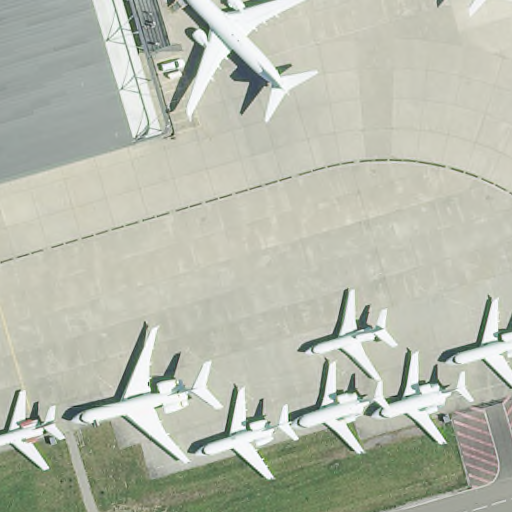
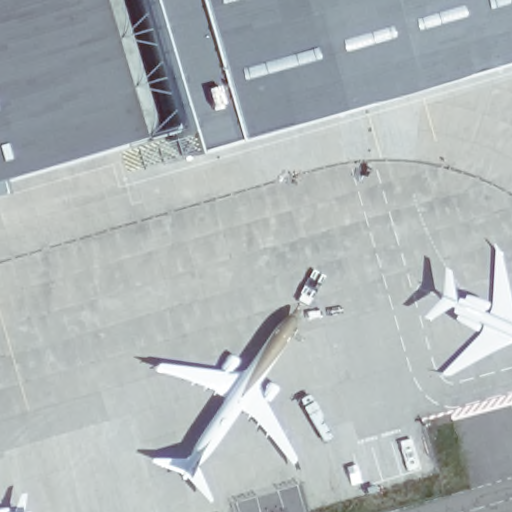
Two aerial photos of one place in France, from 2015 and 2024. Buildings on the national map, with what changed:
unchanged [(150,52),(175,130),(0,178),(0,0),(135,0),(150,52)]
new [(184,157),(175,130),(150,52),(135,0),(512,0),(512,62),(184,157)]

